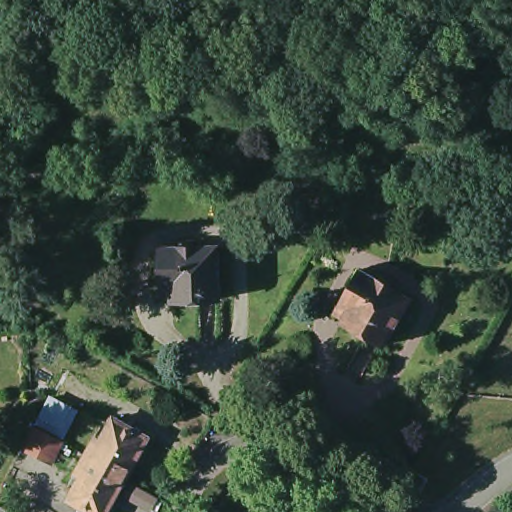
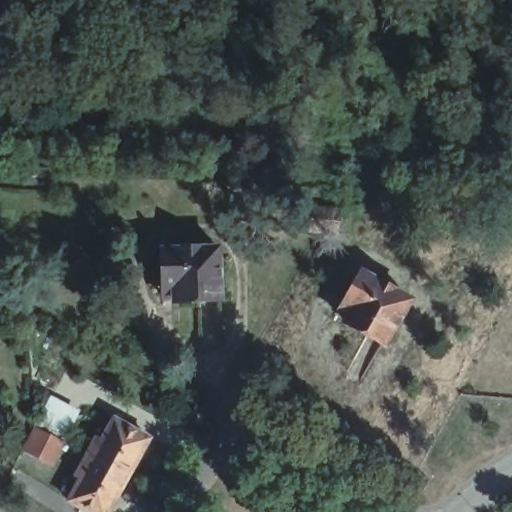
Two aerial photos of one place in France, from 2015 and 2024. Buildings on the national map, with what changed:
unchanged [(339,233),(318,232),(304,231),(306,206),(319,207),(341,209),(339,233)]
unchanged [(172,301),(171,297),(162,297),(161,246),(218,245),(219,300),(172,301)]
unchanged [(343,327),(344,323),(336,318),(361,273),(411,302),(384,350),(343,327)]
unchanged [(40,418),(53,392),(79,407),(66,432),(40,418)]
unchanged [(94,456),(104,437),(110,440),(123,418),(158,438),(135,479),(94,456)]
unchanged [(55,465),(43,459),(26,451),(38,427),(55,436),(54,437),(66,442),(55,465)]
unchanged [(98,512),(76,501),(89,478),(83,475),(94,456),(135,479),(116,512),(98,512)]
unchanged [(419,483),(413,493),(408,491),(414,481),(419,483)]

